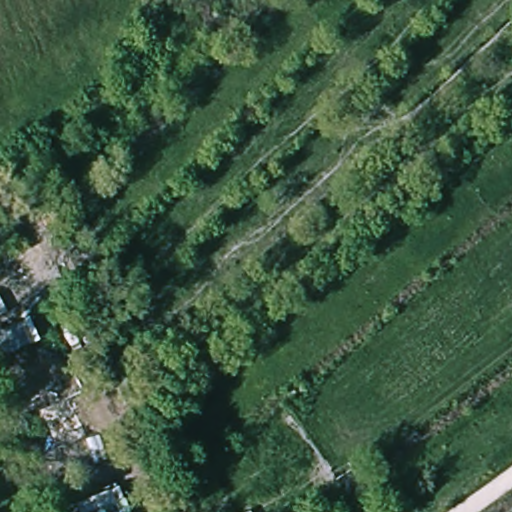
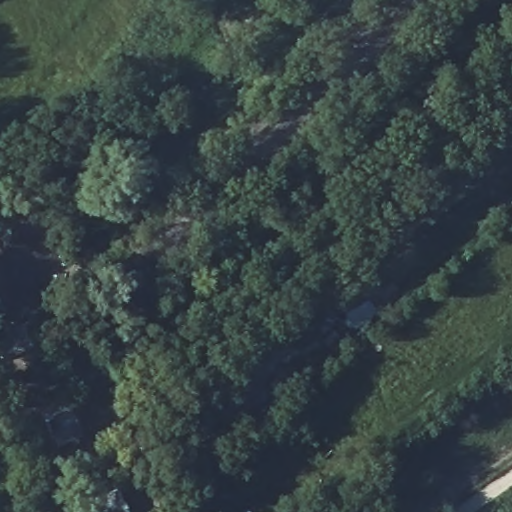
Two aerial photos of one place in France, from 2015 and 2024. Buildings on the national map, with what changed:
unchanged [(5,356),(0,344),(0,331),(33,315),(48,309),(58,332),(42,340),(5,356)]
unchanged [(82,512),(78,502),(121,484),(132,512),(82,512)]
unchanged [(251,512),(243,512),(249,508),(251,512)]

